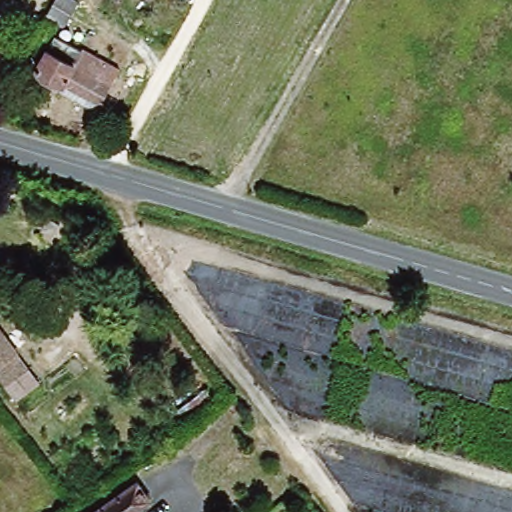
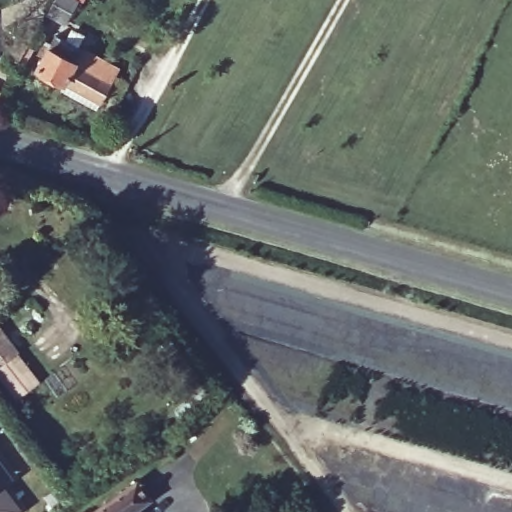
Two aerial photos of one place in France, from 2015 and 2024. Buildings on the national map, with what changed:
unchanged [(47,3),(49,0),(73,0),(65,13),(47,3)]
unchanged [(99,105),(38,68),(58,35),(105,62),(110,53),(124,61),(99,105)]
unchanged [(0,327),(30,368),(5,388),(0,381),(0,327)]
new [(2,483),(21,510),(19,512),(0,512),(0,461),(12,477),(2,483)]
unchanged [(145,499),(130,511),(130,512),(92,512),(132,482),(145,499)]

